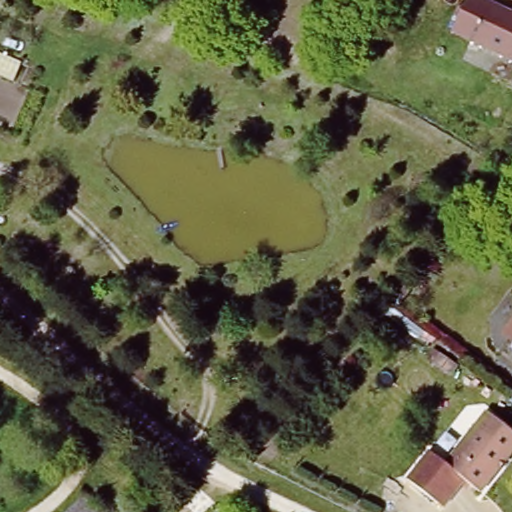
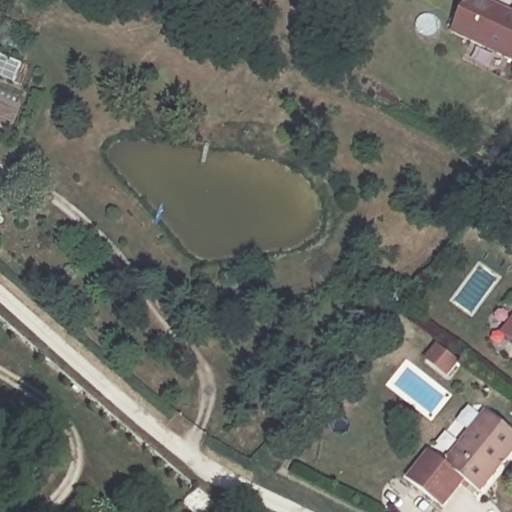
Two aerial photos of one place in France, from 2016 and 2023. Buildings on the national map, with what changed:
unchanged [(510,10),(512,11),(512,63),(447,32),(464,0),(482,0),(509,13),(510,10)]
unchanged [(500,332),(512,315),(512,341),(500,332)]
unchanged [(449,360),(444,367),(431,356),(436,349),(449,360)]
unchanged [(482,412),(512,436),(512,448),(477,493),(441,465),(482,412)]
unchanged [(464,482),(441,508),(401,474),(422,445),(441,465),(464,482)]

